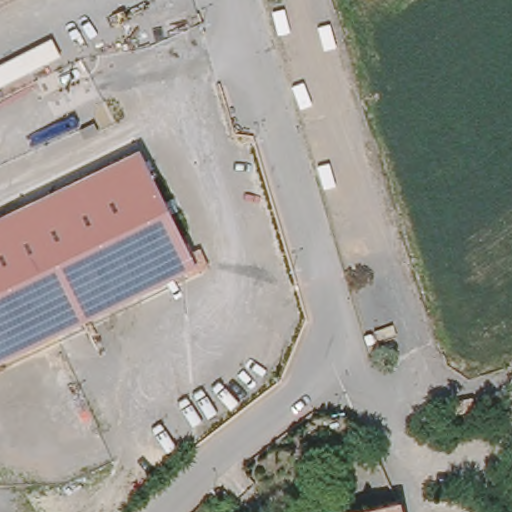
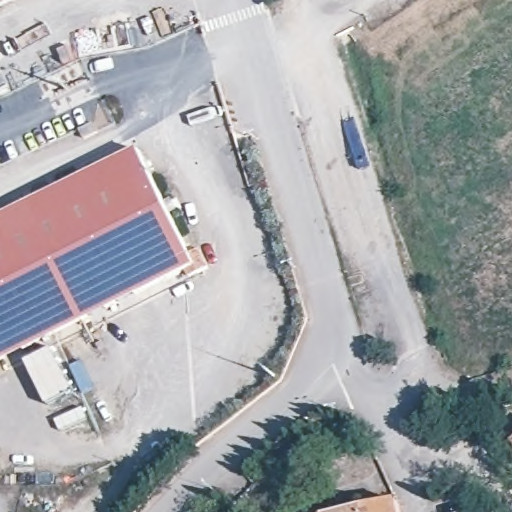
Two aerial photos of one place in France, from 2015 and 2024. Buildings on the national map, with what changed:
unchanged [(0,5),(0,0),(10,0),(0,5)]
unchanged [(80,131),(94,124),(98,132),(85,139),(80,131)]
unchanged [(0,361),(0,219),(141,150),(196,265),(0,361)]
unchanged [(403,496),(407,512),(327,512),(331,510),(403,496)]

